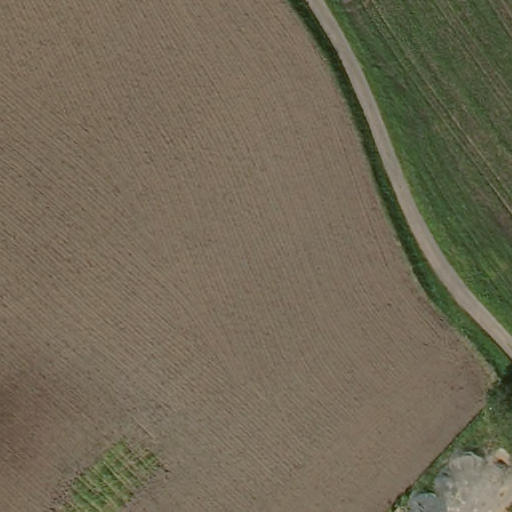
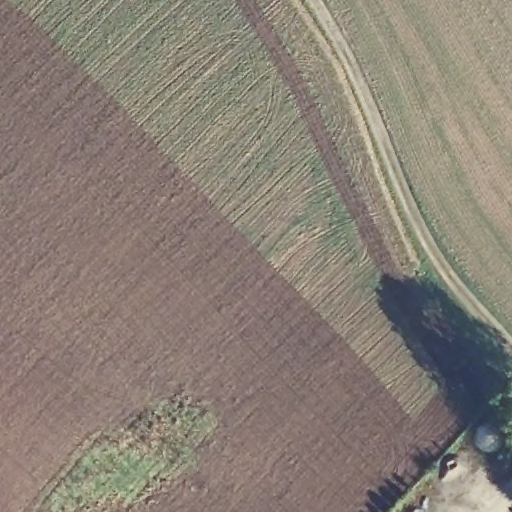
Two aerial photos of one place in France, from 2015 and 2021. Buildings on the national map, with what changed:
[]

